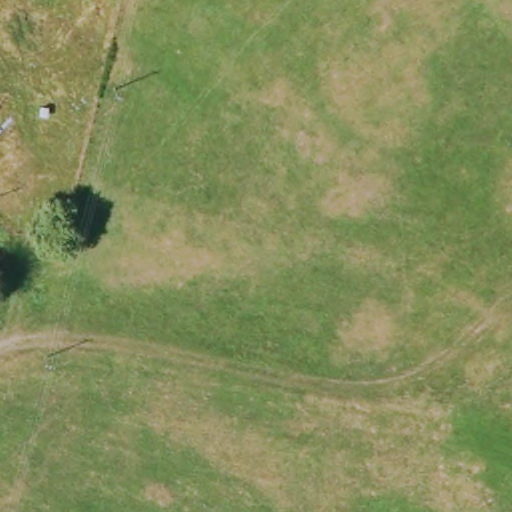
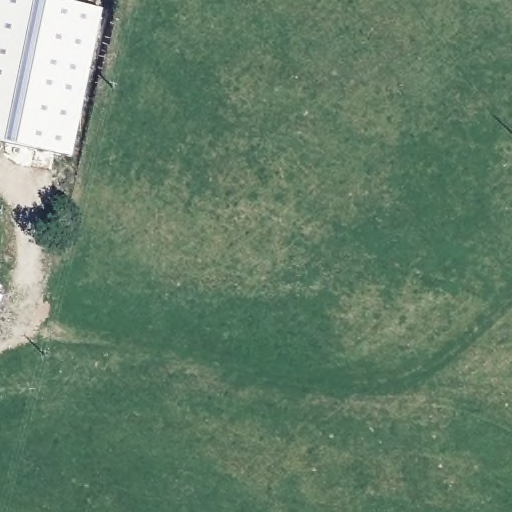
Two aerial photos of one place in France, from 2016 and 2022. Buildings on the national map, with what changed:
new [(70,0),(104,7),(73,157),(0,142),(0,0),(70,0)]

